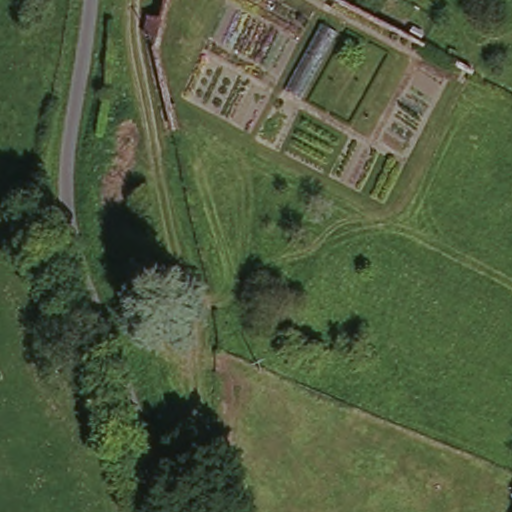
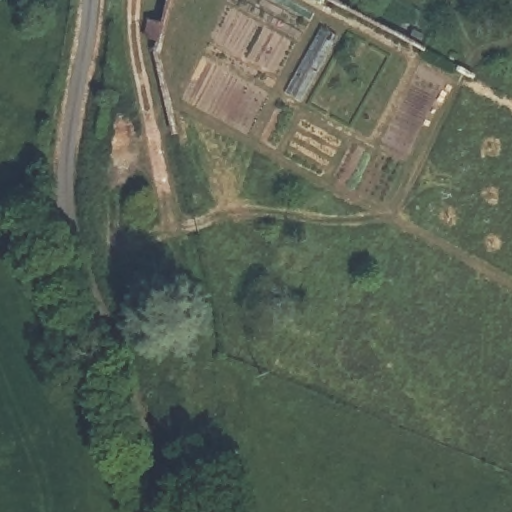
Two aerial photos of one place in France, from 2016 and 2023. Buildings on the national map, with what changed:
unchanged [(155,42),(160,22),(170,25),(166,45),(155,42)]
unchanged [(330,29),(348,39),(310,102),(295,93),(330,29)]

